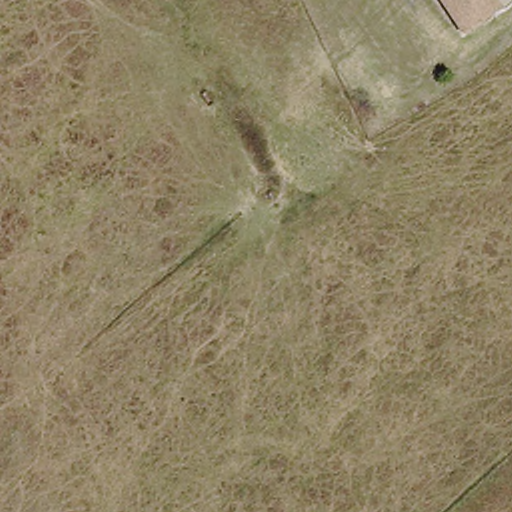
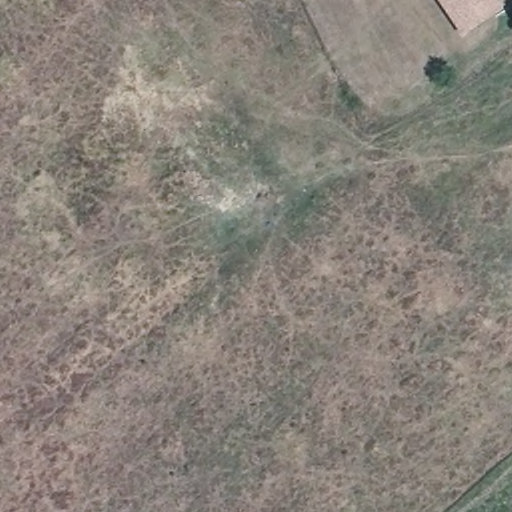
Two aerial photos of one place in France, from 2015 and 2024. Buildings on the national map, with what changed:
unchanged [(501,9),(472,28),(456,39),(431,0),(495,0),(501,9)]

